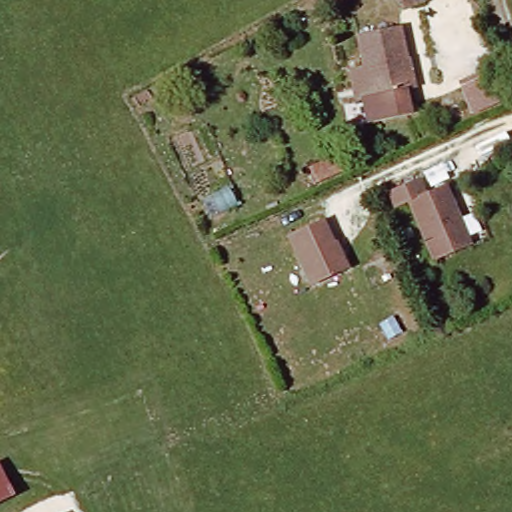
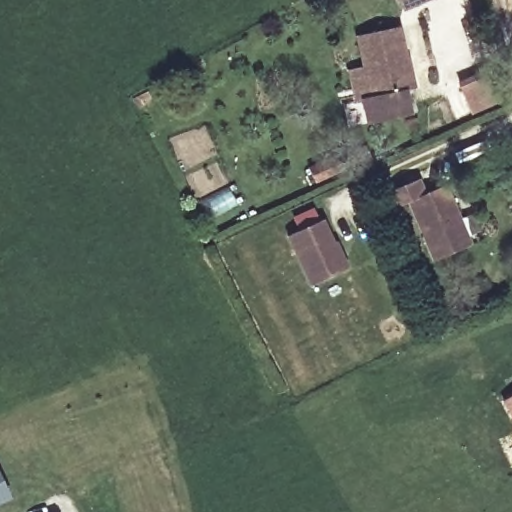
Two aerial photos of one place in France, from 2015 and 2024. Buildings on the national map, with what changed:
unchanged [(403,0),(404,0),(403,1),(403,0)]
unchanged [(412,111),(372,120),(355,41),(395,31),(412,111)]
unchanged [(435,262),(407,202),(395,206),(389,193),(420,181),(425,194),(450,183),(476,244),(435,262)]
unchanged [(240,203),(210,218),(201,195),(227,184),(240,203)]
unchanged [(339,253),(345,268),(309,285),(287,235),(319,219),(336,253),(339,253)]
new [(512,395),(512,419),(501,401),(512,395)]
unchanged [(0,482),(8,495),(0,498),(0,482)]

